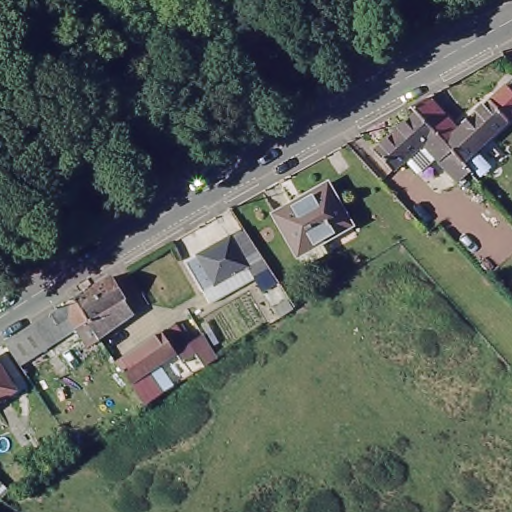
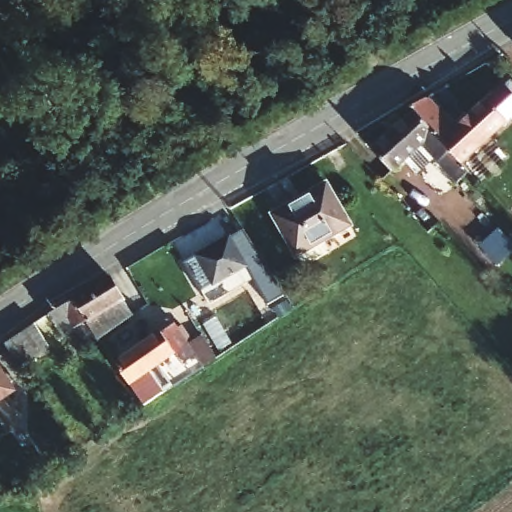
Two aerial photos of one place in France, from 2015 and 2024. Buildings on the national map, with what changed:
unchanged [(409,107),(425,98),(456,130),(510,81),(512,84),(512,118),(462,165),(414,113),(409,107)]
unchanged [(459,177),(440,156),(436,159),(434,156),(415,174),(402,161),(390,172),(371,151),(414,113),(462,165),(467,171),(478,182),(470,189),(459,177)]
unchanged [(349,226),(320,243),(326,254),(302,268),(276,219),(273,214),(300,199),(325,185),(349,226)]
unchanged [(184,264),(226,240),(241,231),(251,247),(265,268),(206,302),(184,264)]
unchanged [(56,310),(110,278),(132,317),(98,339),(86,347),(79,338),(46,361),(24,376),(3,345),(56,310)]
unchanged [(278,318),(272,308),(285,300),(291,310),(278,318)]
unchanged [(173,319),(186,339),(200,331),(214,355),(202,363),(200,364),(192,352),(180,359),(174,349),(148,366),(163,389),(143,402),(115,359),(173,319)]
unchanged [(13,391),(0,399),(0,372),(13,391)]

